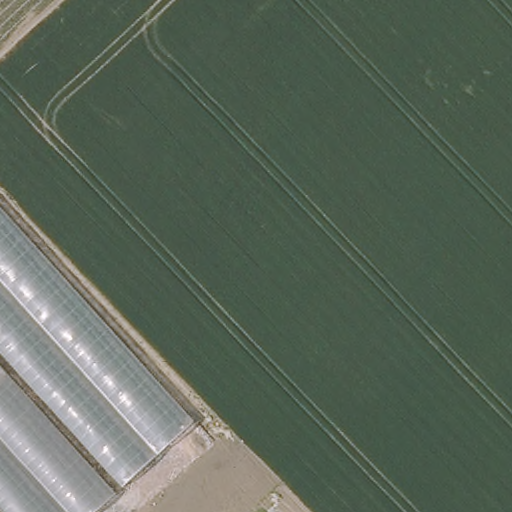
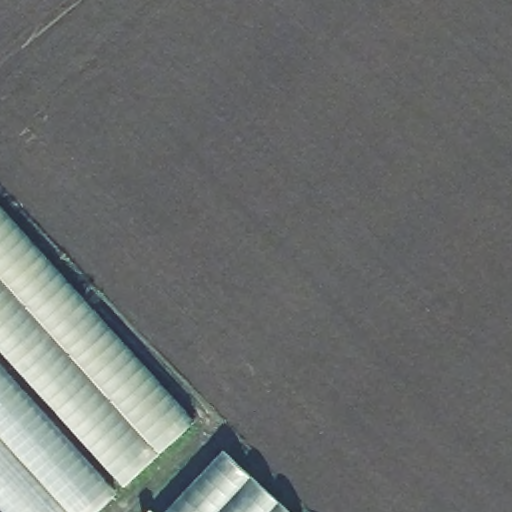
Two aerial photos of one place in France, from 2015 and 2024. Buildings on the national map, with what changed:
unchanged [(195,421),(123,487),(0,352),(0,205),(195,421)]
unchanged [(116,494),(96,512),(0,512),(0,367),(116,494)]
new [(289,512),(164,512),(222,451),(289,512)]

